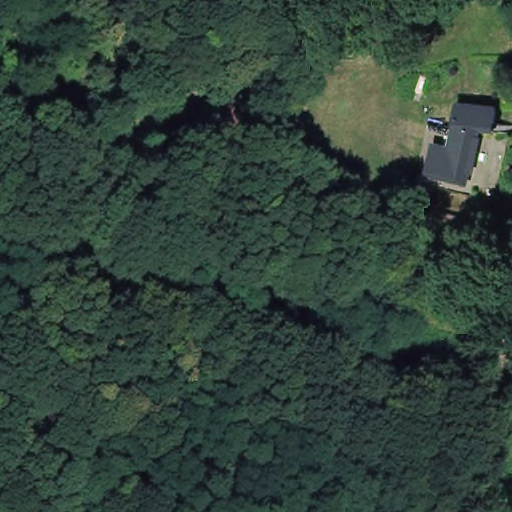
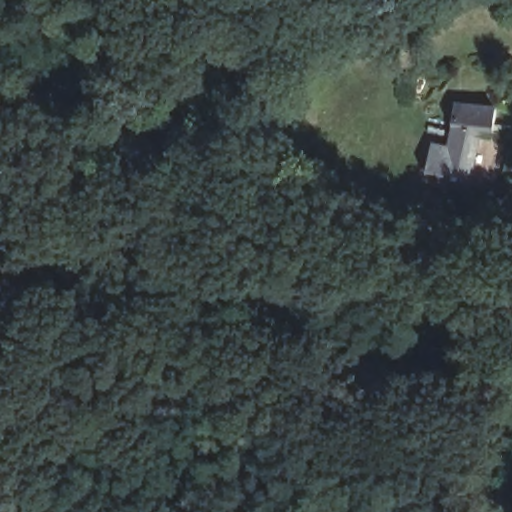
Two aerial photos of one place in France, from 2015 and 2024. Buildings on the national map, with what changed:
unchanged [(453,125),(456,102),(495,106),(492,129),(478,127),(474,142),(451,134),(453,125)]
unchanged [(474,142),(465,182),(426,172),(433,142),(447,146),(451,134),(474,142)]

